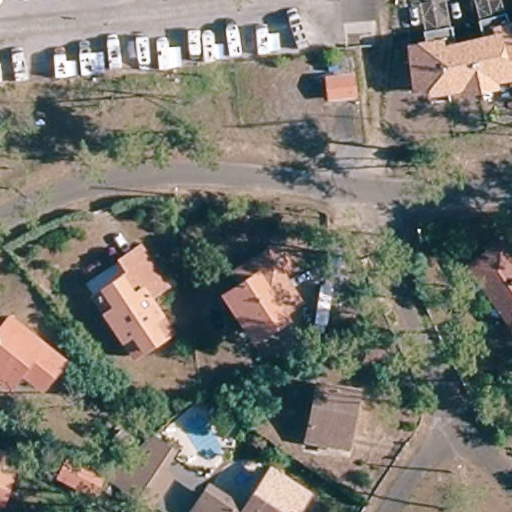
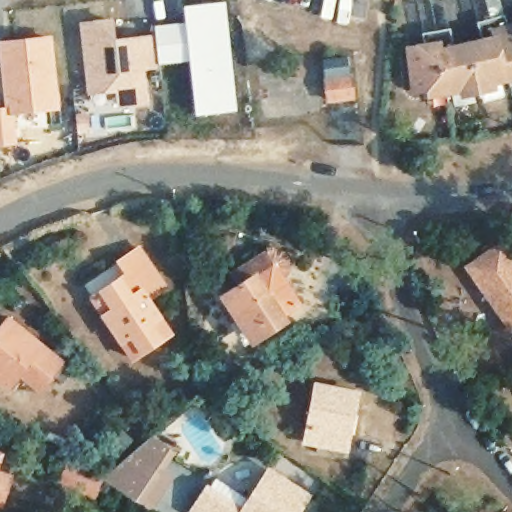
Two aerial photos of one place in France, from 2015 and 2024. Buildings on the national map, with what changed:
new [(113,16),(115,38),(156,35),(156,27),(186,23),(185,5),(225,2),(237,110),(195,114),(191,60),(159,65),(159,69),(146,70),(148,105),(116,108),(114,91),(87,95),(79,20),(113,16)]
unchanged [(497,85),(497,92),(461,100),(459,92),(428,99),(426,91),(410,94),(405,45),(442,39),(444,45),(491,35),(490,27),(512,21),(512,81),(497,85)]
new [(0,57),(0,41),(53,35),(60,110),(14,115),(17,145),(0,145),(0,107),(4,106),(0,57)]
new [(322,79),(325,79),(322,60),(348,57),(351,75),(352,75),(355,99),(327,103),(322,79)]
demolished [(351,95),(326,97),(325,77),(349,75),(351,95)]
unchanged [(512,258),(512,330),(511,330),(466,266),(501,243),(512,258)]
unchanged [(246,343),(214,297),(260,265),(258,260),(260,252),(265,249),(271,246),(278,247),(283,250),(286,256),(286,265),(283,273),(303,304),(246,343)]
unchanged [(165,289),(143,305),(166,338),(127,364),(85,301),(123,277),(117,266),(139,250),(165,289)]
unchanged [(61,366),(49,380),(39,393),(20,378),(8,393),(0,388),(0,335),(8,325),(61,366)]
unchanged [(343,455),(299,448),(308,385),(352,392),(343,455)]
unchanged [(102,478),(131,452),(141,445),(148,438),(167,451),(156,468),(135,500),(102,478)]
unchanged [(238,512),(264,471),(301,496),(291,512),(238,512)]
unchanged [(0,480),(5,481),(0,498),(0,480)]
unchanged [(201,491),(232,512),(190,512),(188,510),(201,491)]

